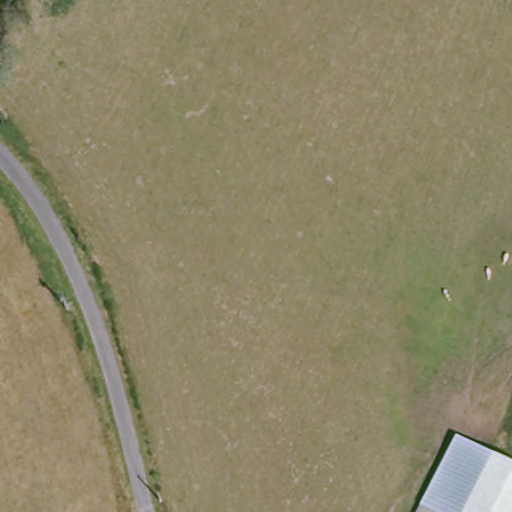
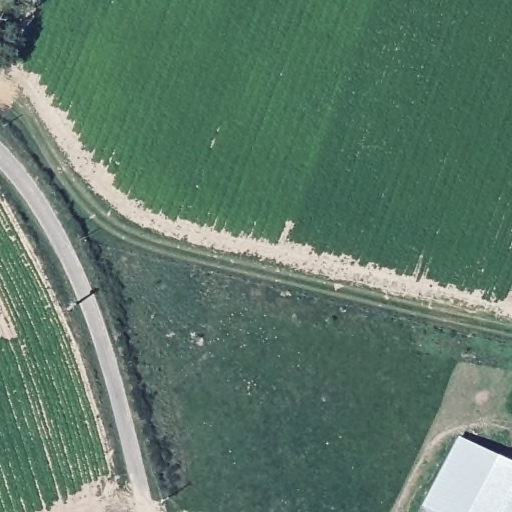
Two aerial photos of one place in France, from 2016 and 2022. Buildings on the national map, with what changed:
unchanged [(423,503),(462,438),(512,465),(512,512),(417,512),(423,503)]

